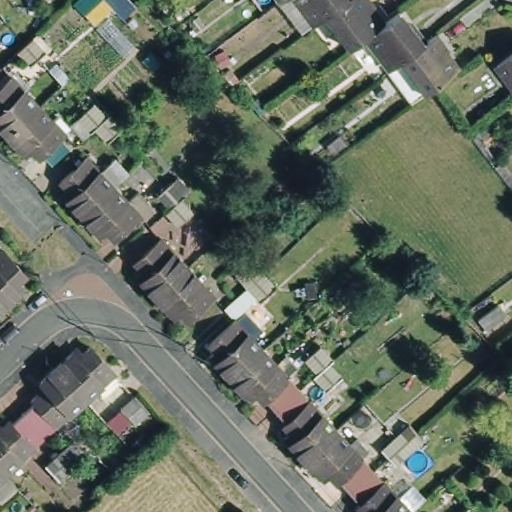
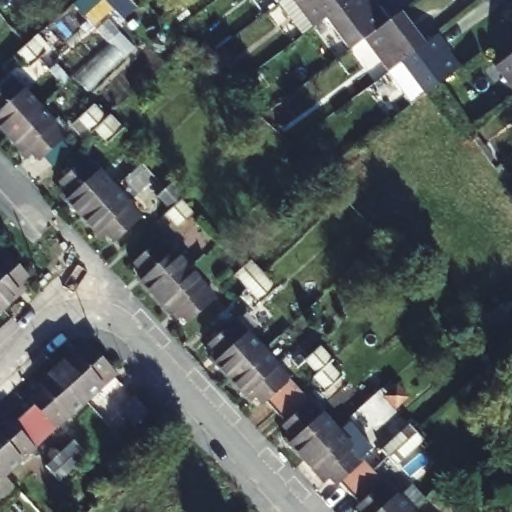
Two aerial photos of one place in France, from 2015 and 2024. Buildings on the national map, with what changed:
unchanged [(278,1),(276,0),(279,0),(278,1)]
unchanged [(324,17),(314,25),(293,0),(347,0),(324,17)]
unchanged [(364,35),(349,47),(324,17),(347,0),(370,0),(374,4),(369,8),(381,22),(364,35)]
unchanged [(364,35),(381,22),(397,10),(410,25),(414,22),(427,38),(436,31),(449,46),(444,50),(455,65),(431,84),(422,90),(408,101),(402,94),(404,92),(392,77),(390,79),(384,71),(389,67),(364,35)]
unchanged [(26,51),(39,40),(51,54),(36,68),(23,54),(26,51)]
unchanged [(512,51),(512,85),(496,64),(512,51)]
unchanged [(10,138),(0,127),(0,118),(1,117),(0,115),(0,95),(16,80),(43,109),(10,138)]
unchanged [(131,129),(113,145),(99,131),(95,135),(83,120),(100,105),(113,118),(117,115),(131,129)]
unchanged [(43,161),(31,150),(25,155),(10,138),(43,109),(68,137),(43,161)]
unchanged [(79,220),(64,204),(70,197),(59,185),(85,161),(112,190),(79,220)]
unchanged [(161,198),(178,181),(192,196),(187,200),(200,215),(183,230),(170,216),(175,212),(161,198)]
unchanged [(111,243),(99,230),(94,235),(79,220),(112,190),(138,219),(111,243)]
unchanged [(0,232),(0,229),(1,230),(0,232)]
unchanged [(158,301),(143,284),(148,278),(138,267),(164,242),(191,271),(158,301)]
unchanged [(5,249),(29,274),(17,285),(22,292),(6,306),(0,300),(0,253),(5,249)]
unchanged [(253,290),(241,276),(258,261),(269,275),(284,291),(268,306),(253,290)]
unchanged [(191,325),(179,311),(173,317),(158,301),(191,271),(218,300),(191,325)]
unchanged [(6,306),(0,312),(0,300),(6,306)]
unchanged [(233,377),(218,361),(223,356),(213,343),(240,319),(266,347),(233,377)]
unchanged [(71,346),(76,351),(88,340),(113,367),(84,393),(55,361),(71,346)]
unchanged [(310,360),(327,345),(341,360),(336,363),(350,379),(333,394),(319,379),(323,375),(310,360)]
unchanged [(298,437),(286,424),(289,421),(279,410),(268,398),(264,401),(253,388),(246,393),(233,377),(266,347),(292,376),(303,388),(314,400),(341,429),(307,459),(292,442),(298,437)]
unchanged [(84,393),(55,420),(30,392),(43,380),(38,375),(55,361),(84,393)]
unchanged [(151,420),(137,432),(123,417),(138,403),(151,420)]
unchanged [(7,420),(31,446),(2,473),(0,471),(0,426),(7,420)]
unchanged [(392,461),(384,453),(413,428),(420,435),(428,444),(399,470),(392,461)]
unchanged [(363,503),(353,491),(342,480),(339,482),(328,470),(322,475),(307,459),(341,429),(366,458),(377,470),(388,481),(415,511),(414,512),(366,512),(361,505),(363,503)]
unchanged [(50,468),(64,455),(79,442),(93,458),(78,471),(63,483),(50,468)]
unchanged [(0,475),(0,471),(2,473),(0,475)]
unchanged [(482,512),(472,512),(478,507),(482,512)]
unchanged [(415,512),(414,512),(415,511),(415,512)]

